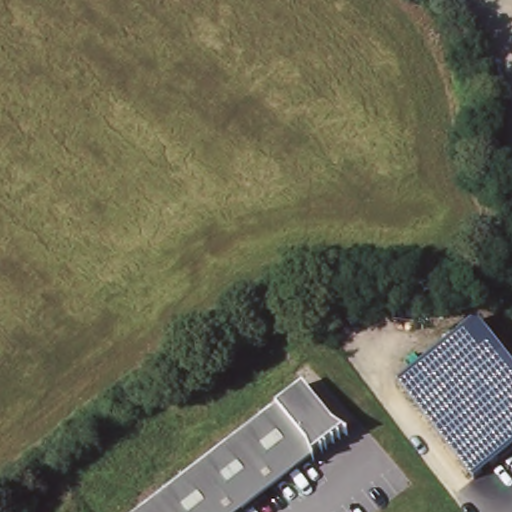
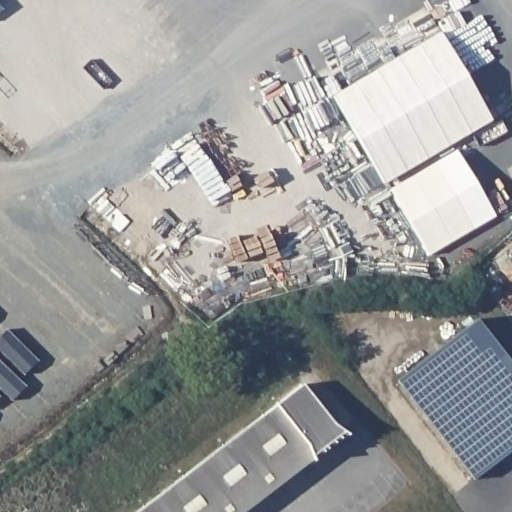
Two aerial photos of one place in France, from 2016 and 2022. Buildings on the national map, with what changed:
new [(493,121),(385,185),(333,95),(440,31),(493,121)]
new [(391,190),(456,151),(495,219),(430,256),(391,190)]
unchanged [(477,319),(512,361),(512,447),(474,477),(398,382),(477,319)]
unchanged [(308,384),(339,425),(353,435),(319,462),(316,456),(243,512),(142,512),(308,384)]

